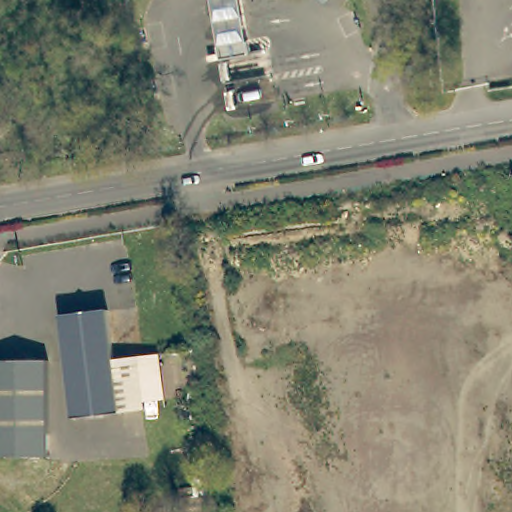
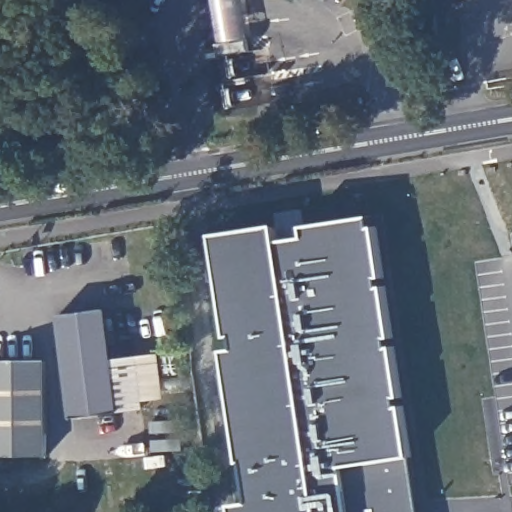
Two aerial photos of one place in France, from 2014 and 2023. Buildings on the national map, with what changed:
unchanged [(255,75),(224,80),(212,0),(244,0),(255,75)]
new [(232,507),(250,504),(226,352),(239,349),(237,337),(228,339),(213,235),(276,224),(279,241),(303,237),(302,226),(367,215),(368,227),(375,226),(410,456),(418,512),(224,512),(225,509),(232,507)]
unchanged [(104,305),(112,356),(113,356),(134,353),(142,403),(119,406),(117,407),(117,409),(72,416),(56,312),(104,305)]
unchanged [(46,362),(47,459),(0,459),(0,363),(46,362)]

